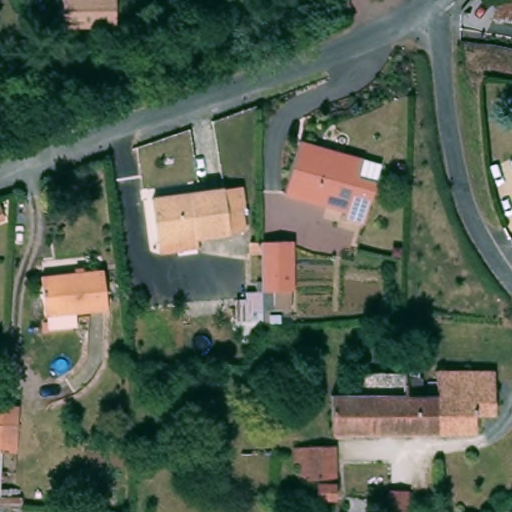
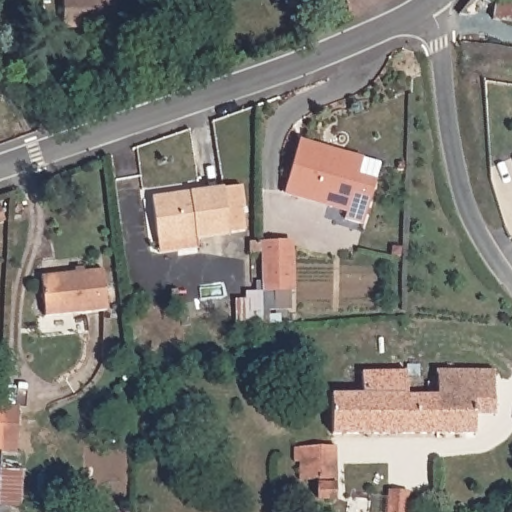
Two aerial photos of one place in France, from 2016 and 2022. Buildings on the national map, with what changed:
unchanged [(62,0),(116,0),(117,27),(62,29),(62,0)]
unchanged [(488,18),(492,0),(512,0),(512,22),(488,18)]
unchanged [(342,213),(345,202),(328,200),(285,192),(292,147),(330,155),(333,155),(335,146),(360,151),(378,154),(375,170),(365,216),(342,213)]
unchanged [(168,252),(164,229),(157,192),(226,180),(245,177),(248,198),(245,199),(250,225),(235,227),(201,234),(204,246),(168,252)]
unchanged [(236,299),(244,299),(244,292),(262,287),(261,255),(254,254),(255,242),(290,241),(290,307),(273,307),(273,321),(257,322),(257,332),(236,333),(236,299)]
unchanged [(50,315),(45,276),(104,267),(110,306),(104,308),(50,315)]
unchanged [(362,399),(366,372),(400,371),(399,435),(326,432),(332,400),(362,399)]
unchanged [(440,372),(437,436),(399,435),(400,371),(440,372)]
unchanged [(497,375),(496,419),(477,420),(472,437),(437,436),(440,372),(497,375)]
unchanged [(9,430),(7,453),(0,453),(0,403),(10,403),(9,430)]
unchanged [(326,442),(327,455),(329,480),(329,485),(330,488),(315,487),(315,478),(296,478),(296,455),(288,455),(288,442),(302,442),(326,442)]
unchanged [(408,512),(386,512),(390,482),(410,483),(408,512)]
unchanged [(361,512),(342,512),(343,502),(361,505),(361,512)]

